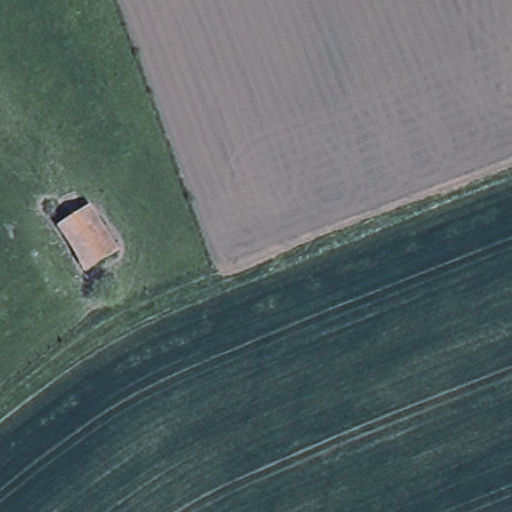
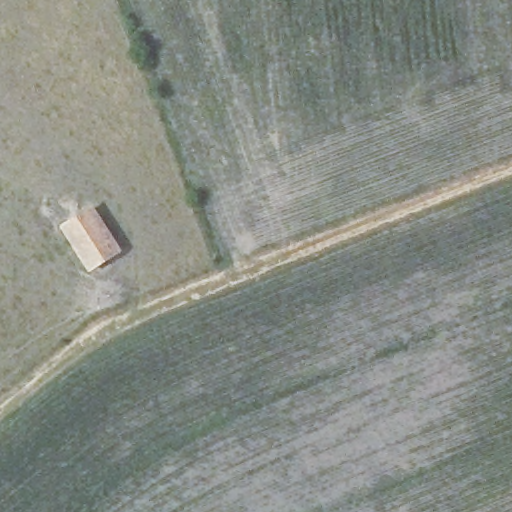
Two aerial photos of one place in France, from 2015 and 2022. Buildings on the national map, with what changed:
unchanged [(91,202),(120,249),(85,272),(53,226),(91,202)]

